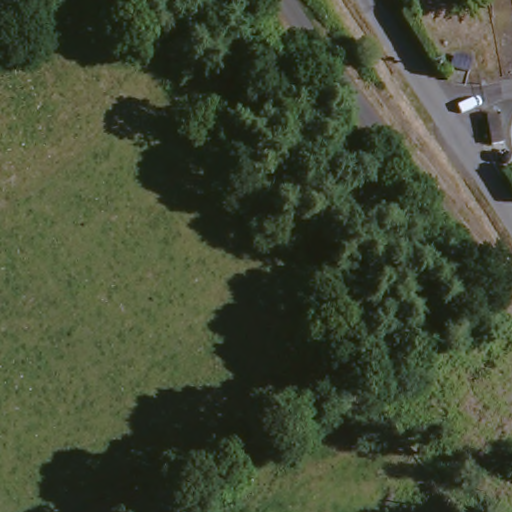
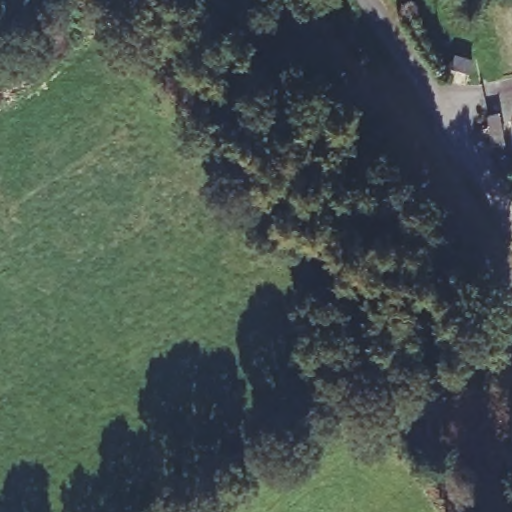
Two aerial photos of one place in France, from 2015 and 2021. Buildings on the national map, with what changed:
unchanged [(494,148),(488,121),(498,119),(503,146),(494,148)]

